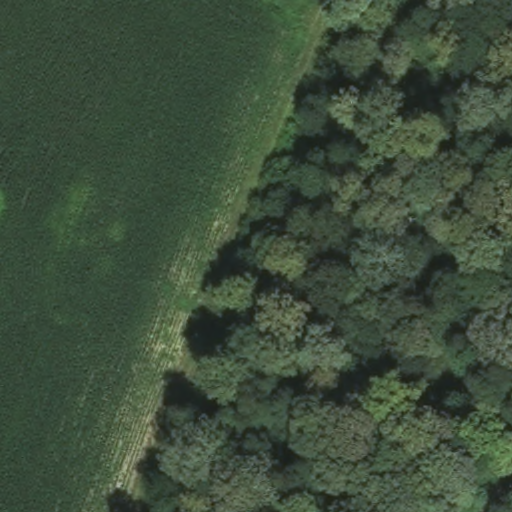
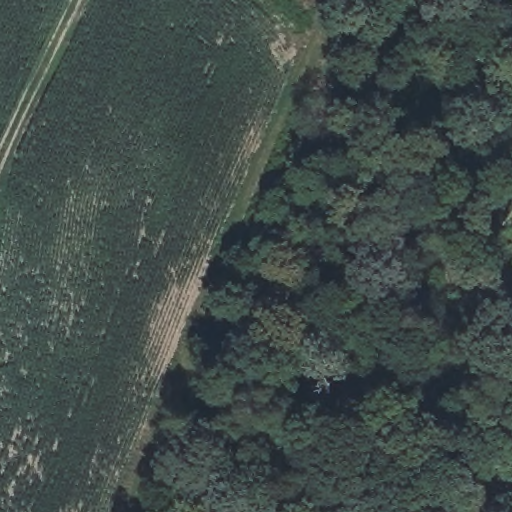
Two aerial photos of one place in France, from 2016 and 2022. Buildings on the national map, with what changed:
unchanged [(324,0),(312,26),(276,13),(281,0),(322,0),(324,0)]

